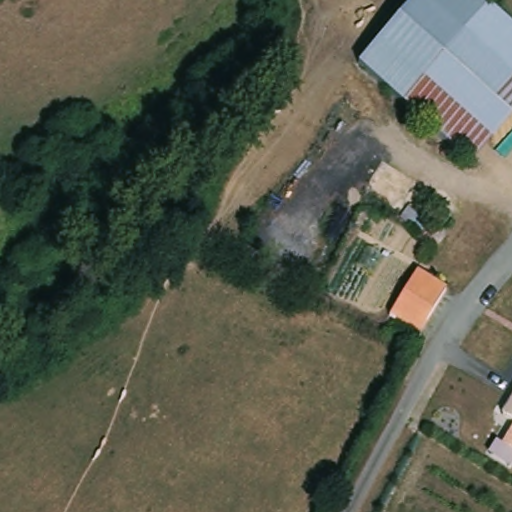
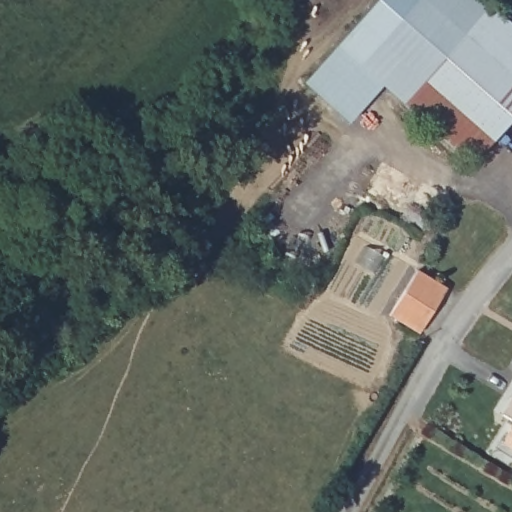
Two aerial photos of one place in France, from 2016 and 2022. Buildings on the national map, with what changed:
new [(375,0),(421,0),(361,62),(382,82),(348,122),(303,83),(375,0)]
unchanged [(512,122),(472,165),(361,62),(421,0),(484,0),(494,10),(512,26),(512,122)]
unchanged [(411,346),(383,327),(394,310),(423,268),(451,287),(422,330),(411,346)]
unchanged [(512,400),(512,421),(502,414),(512,400)]

